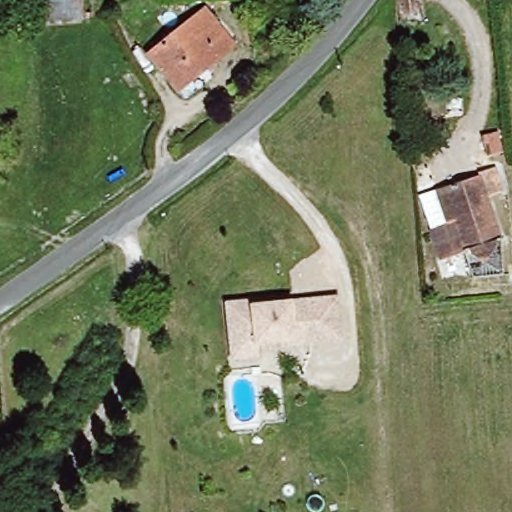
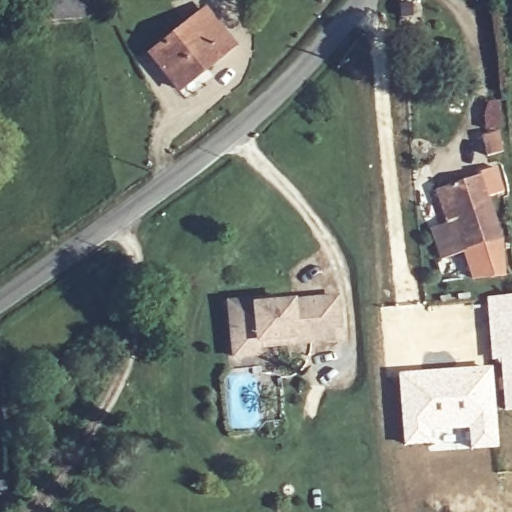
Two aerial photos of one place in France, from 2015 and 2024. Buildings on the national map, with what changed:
unchanged [(235,47),(179,87),(153,51),(209,12),(235,47)]
unchanged [(510,242),(512,250),(512,261),(495,265),(490,249),(448,261),(428,195),(481,179),(481,175),(497,170),(505,194),(488,199),(503,244),(510,242)]
new [(512,294),(512,411),(503,412),(498,360),(491,361),(486,297),(512,294)]
unchanged [(251,350),(252,357),(227,359),(223,308),(266,303),(267,307),(332,301),(336,342),(307,345),(305,322),(287,324),(288,340),(288,346),(251,350)]
new [(492,365),(499,447),(428,451),(427,445),(402,447),(396,372),(492,365)]

